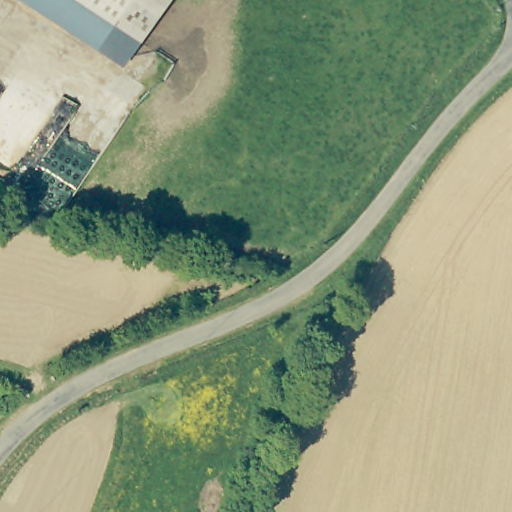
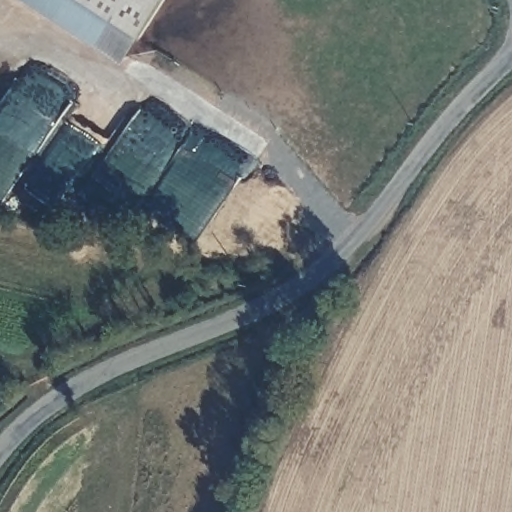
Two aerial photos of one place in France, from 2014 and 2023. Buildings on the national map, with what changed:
unchanged [(23,0),(163,0),(123,63),(23,0)]

